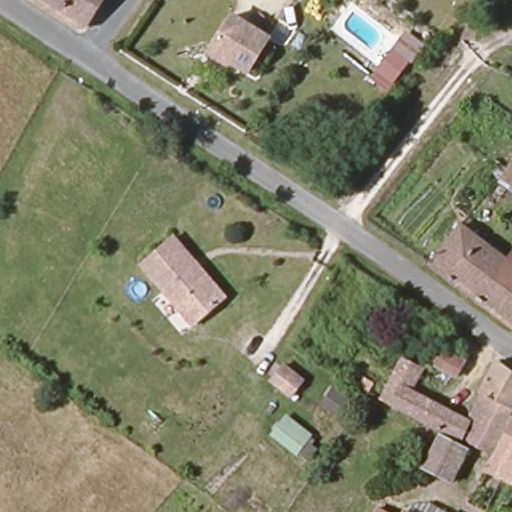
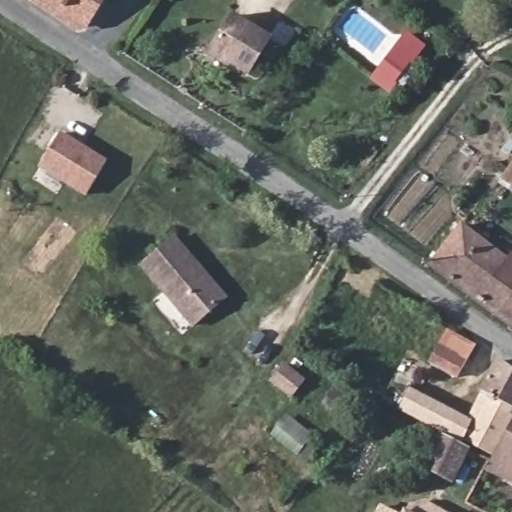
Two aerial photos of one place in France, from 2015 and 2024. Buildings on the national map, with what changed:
unchanged [(84,26),(43,0),(108,0),(92,23),(84,26)]
unchanged [(211,51),(232,17),(268,40),(247,74),(211,51)]
new [(408,30),(423,42),(388,91),(371,78),(408,30)]
new [(109,158),(85,196),(37,168),(61,132),(109,158)]
unchanged [(512,173),(512,186),(506,181),(512,173)]
unchanged [(432,262),(434,260),(465,224),(510,260),(512,258),(512,322),(502,315),(432,262)]
unchanged [(200,324),(149,264),(180,236),(202,261),(200,263),(230,298),(200,324)]
unchanged [(438,363),(447,348),(472,362),(463,377),(438,363)]
unchanged [(468,435),(466,440),(387,396),(407,357),(422,364),(411,386),(472,422),(487,394),(494,398),(512,409),(512,429),(501,452),(468,435)]
unchanged [(273,377),(285,361),(305,376),(293,392),(273,377)]
unchanged [(487,394),(485,392),(503,361),(512,368),(512,409),(494,398),(487,394)]
unchanged [(297,455),(272,435),(287,416),(311,434),(297,455)]
unchanged [(497,459),(501,452),(512,429),(512,478),(492,468),(497,459)]
unchanged [(432,467),(447,437),(471,449),(456,479),(432,467)]
unchanged [(415,512),(408,512),(410,509),(415,512)]
unchanged [(456,512),(452,512),(453,510),(456,512)]

